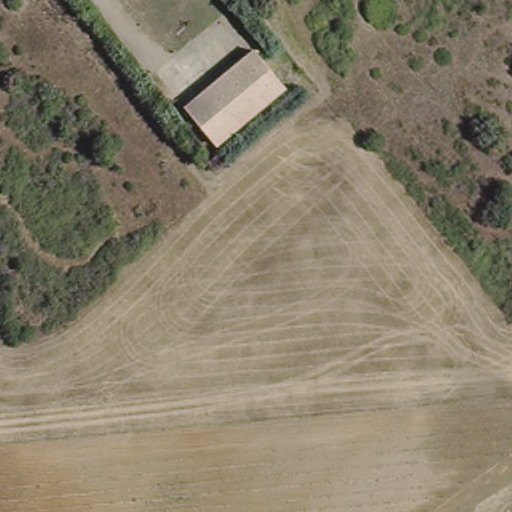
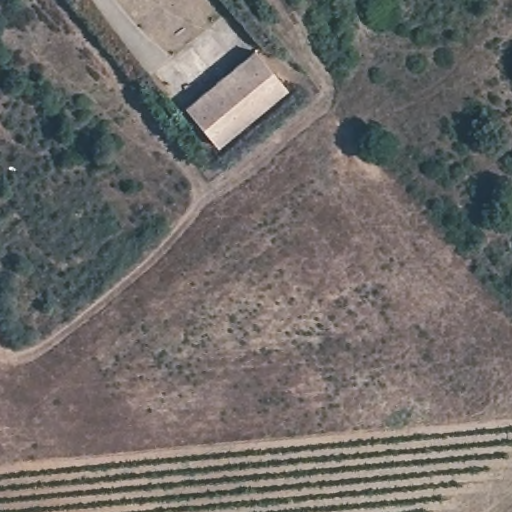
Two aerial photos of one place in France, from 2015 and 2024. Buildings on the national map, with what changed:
unchanged [(284,94),(218,149),(186,114),(254,57),(284,94)]

